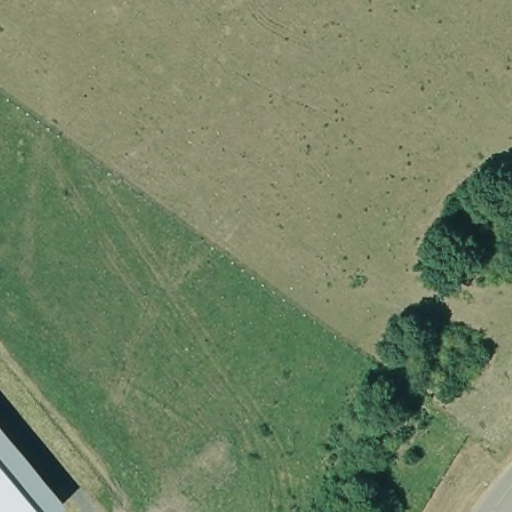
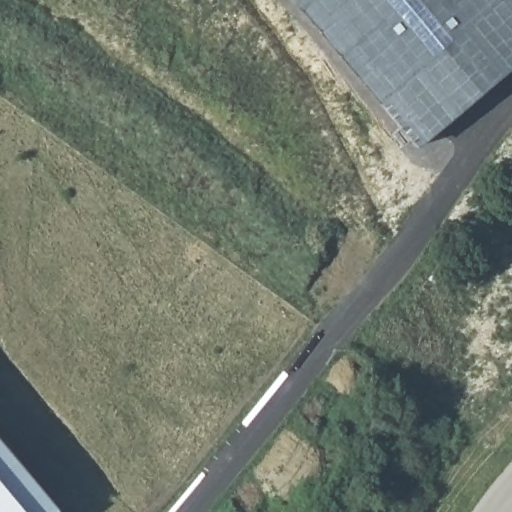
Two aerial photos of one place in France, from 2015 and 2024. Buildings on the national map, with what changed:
new [(512,69),(416,149),(290,0),(512,0),(512,69)]
new [(54,512),(0,512),(0,448),(54,512)]

